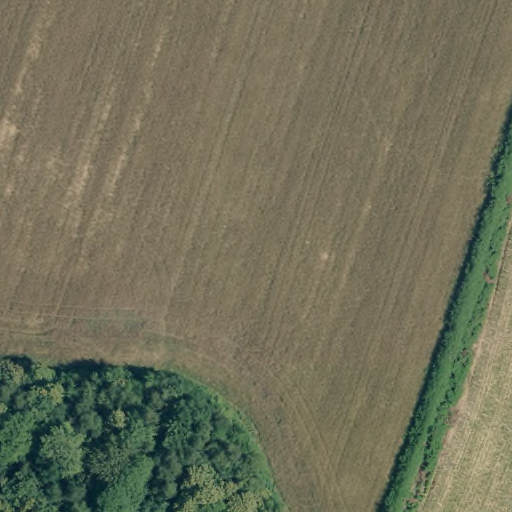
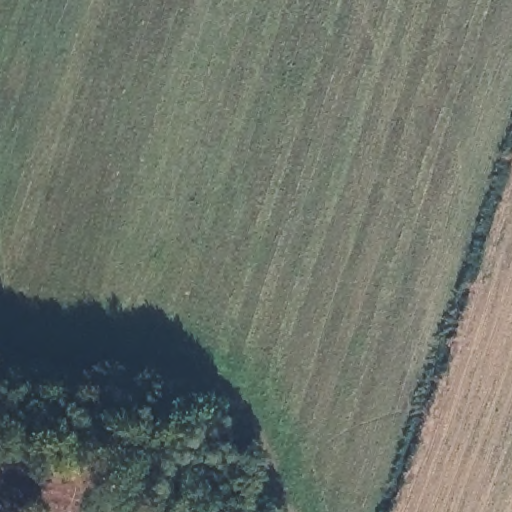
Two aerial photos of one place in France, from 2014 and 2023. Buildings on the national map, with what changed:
[]

